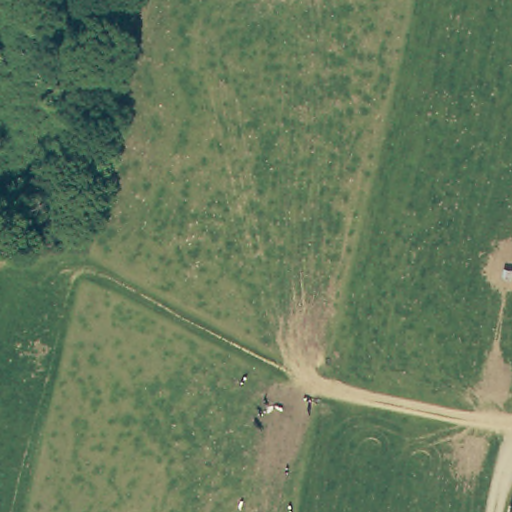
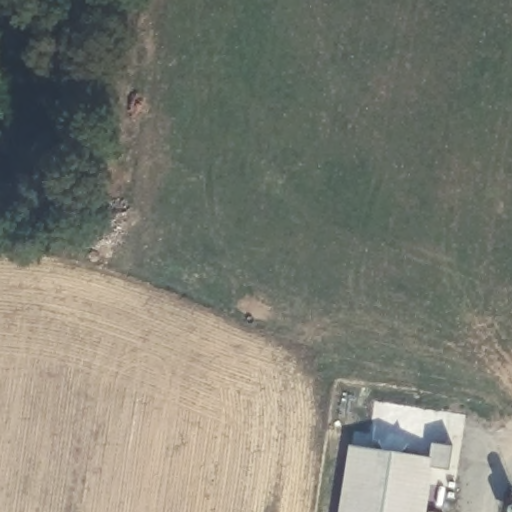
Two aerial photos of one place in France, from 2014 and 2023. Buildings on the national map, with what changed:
new [(433,470),(427,512),(338,512),(348,446),(430,458),(432,444),(453,447),(449,472),(433,470)]

